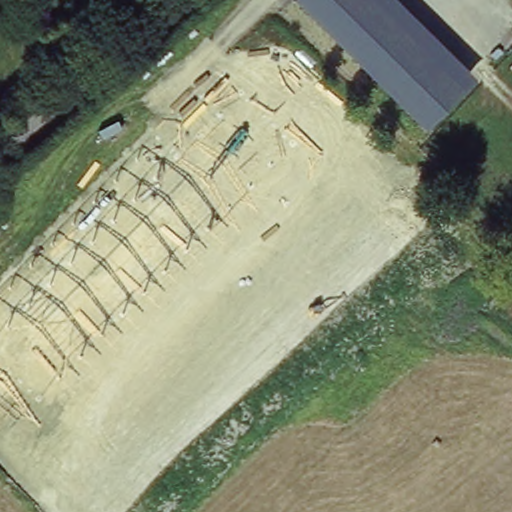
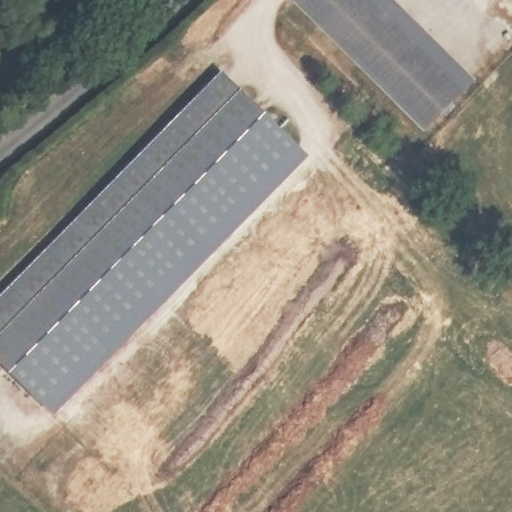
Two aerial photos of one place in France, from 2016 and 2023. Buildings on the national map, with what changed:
unchanged [(296,0),(397,0),(476,79),(425,128),(296,0)]
new [(215,77),(284,144),(36,399),(0,364),(0,302),(215,77)]

